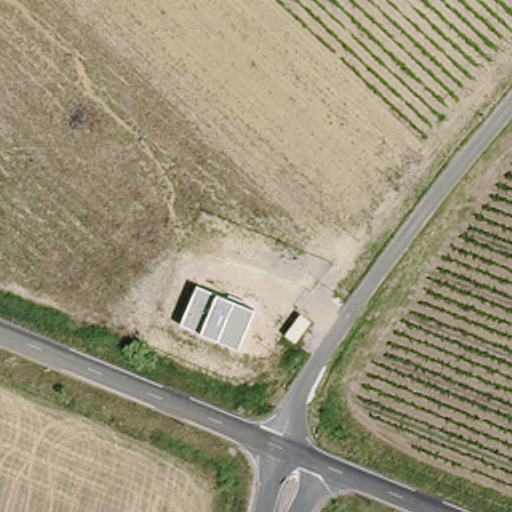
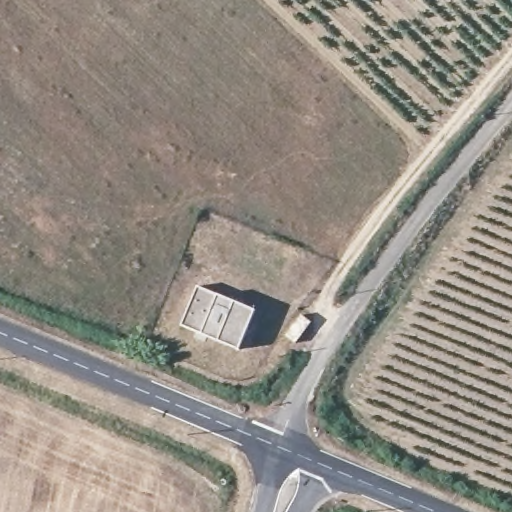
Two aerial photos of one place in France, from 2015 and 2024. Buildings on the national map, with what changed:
unchanged [(197,285),(218,295),(256,311),(240,348),(202,333),(181,325),(197,285)]
unchanged [(277,338),(294,318),(303,326),(287,346),(277,338)]

